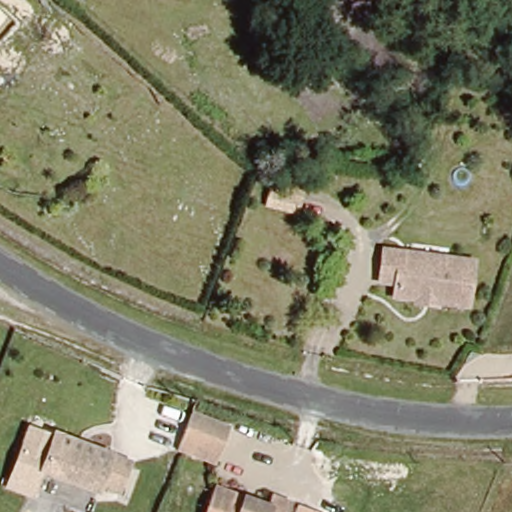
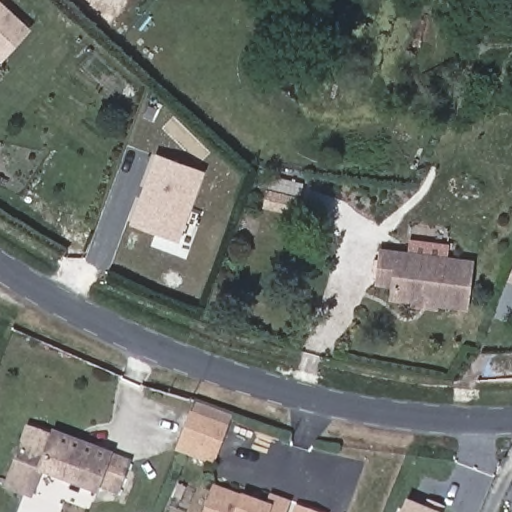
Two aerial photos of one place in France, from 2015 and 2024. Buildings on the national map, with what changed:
demolished [(10,0),(32,0),(38,24),(17,30),(10,0)]
new [(0,61),(0,1),(31,30),(1,62),(0,61)]
new [(177,237),(171,235),(169,240),(129,225),(156,154),(202,171),(177,237)]
unchanged [(271,193),(300,202),(296,216),(267,207),(271,193)]
unchanged [(408,252),(414,260),(434,262),(440,257),(469,260),(463,306),(433,302),(429,298),(415,296),(413,300),(390,296),(391,282),(376,280),(380,249),(408,252)]
unchanged [(186,415),(233,435),(221,465),(175,445),(186,415)]
unchanged [(50,432),(129,462),(116,493),(97,485),(93,492),(36,468),(50,432)]
unchanged [(270,499),(286,506),(284,512),(205,512),(214,490),(266,509),(270,499)]
new [(430,512),(403,512),(406,502),(430,512)]
unchanged [(305,512),(295,512),(296,509),(305,512)]

